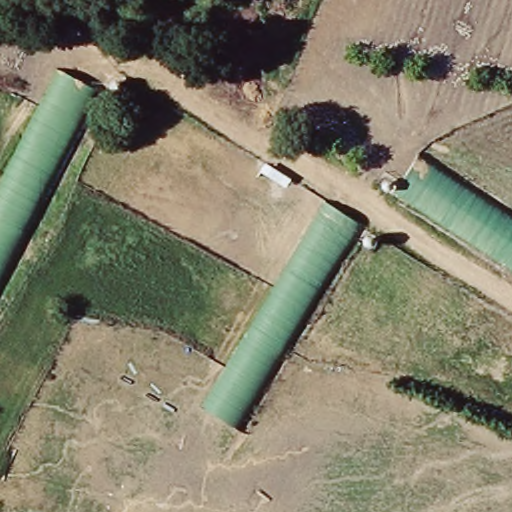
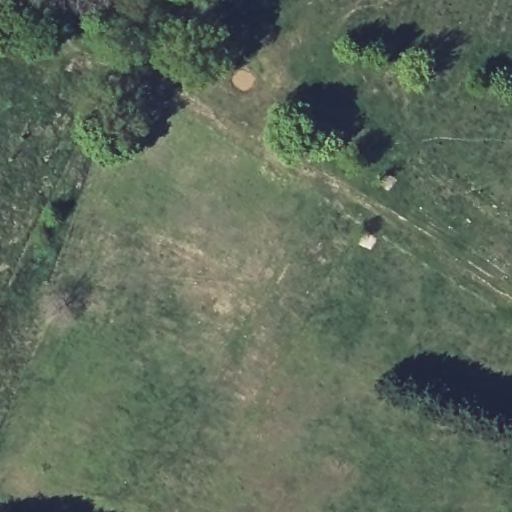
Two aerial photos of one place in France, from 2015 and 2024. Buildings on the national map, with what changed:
demolished [(94,92),(24,234),(0,220),(0,182),(58,72),(94,92)]
demolished [(416,154),(512,224),(512,270),(392,193),(416,154)]
demolished [(325,206),(359,230),(279,352),(249,329),(325,206)]
demolished [(0,220),(24,234),(0,283),(0,220)]
demolished [(234,432),(201,410),(249,329),(279,352),(234,432)]

